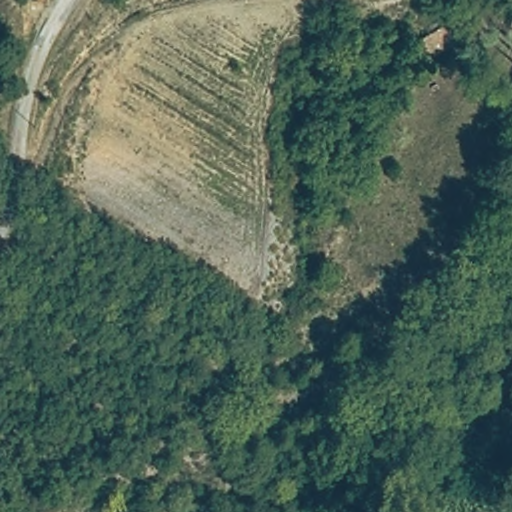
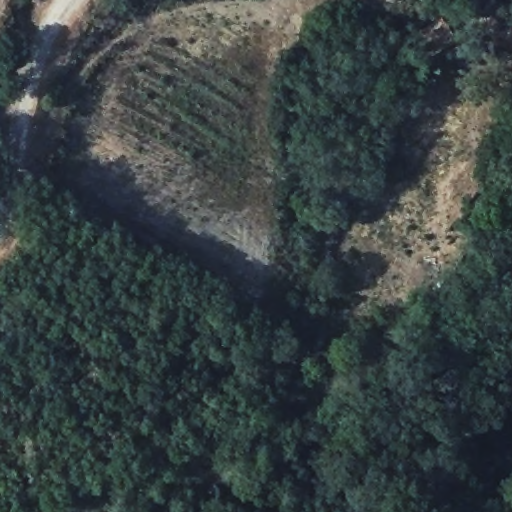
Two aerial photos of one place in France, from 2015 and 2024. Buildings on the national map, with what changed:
unchanged [(413,39),(452,20),(461,40),(423,61),(413,39)]

